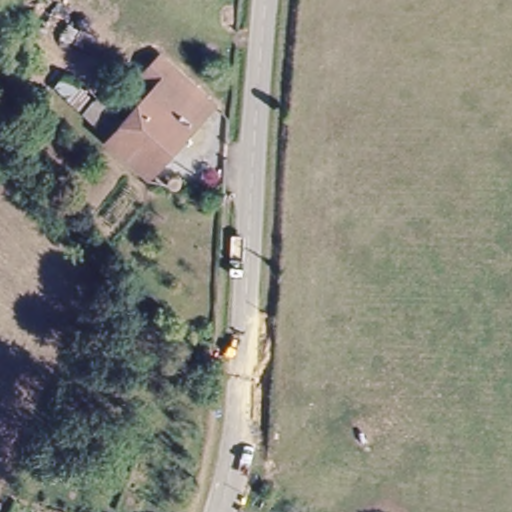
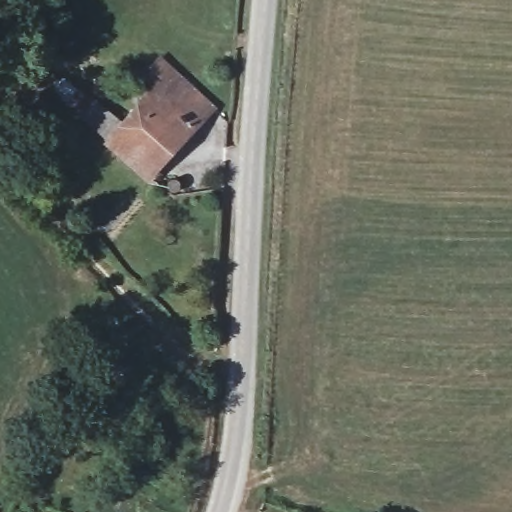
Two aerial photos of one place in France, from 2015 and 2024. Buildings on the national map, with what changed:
unchanged [(150,80),(140,68),(157,48),(214,102),(148,175),(105,136),(150,80)]

